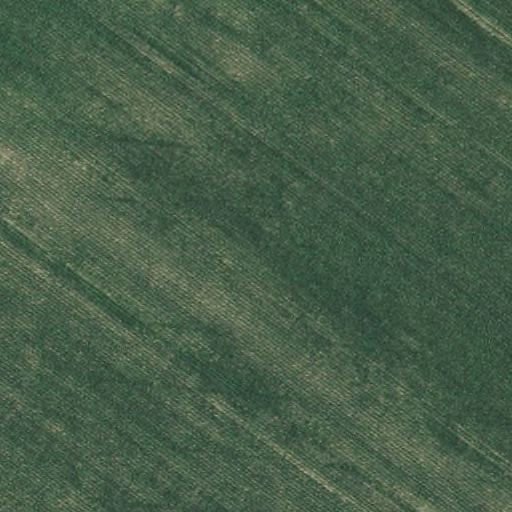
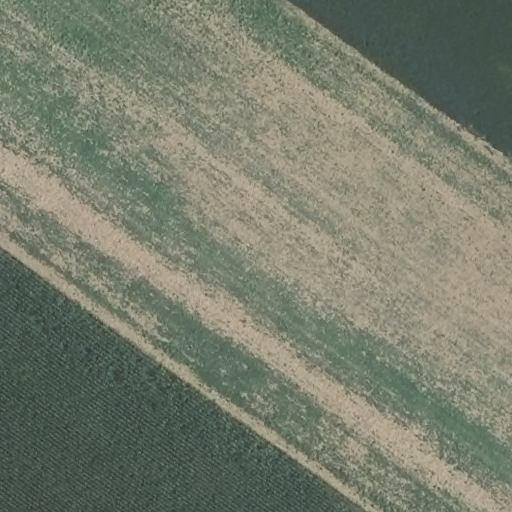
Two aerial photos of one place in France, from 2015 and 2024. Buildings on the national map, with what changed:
[]

